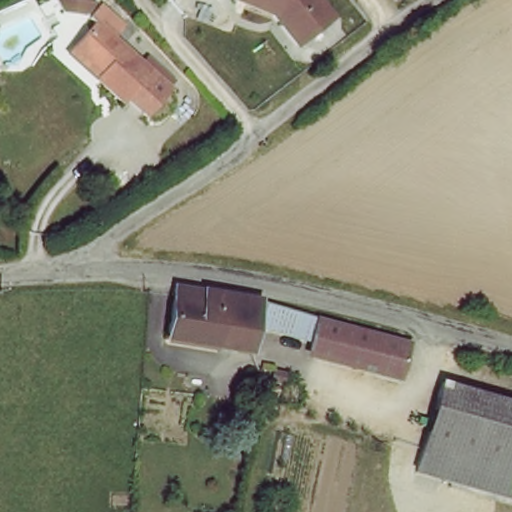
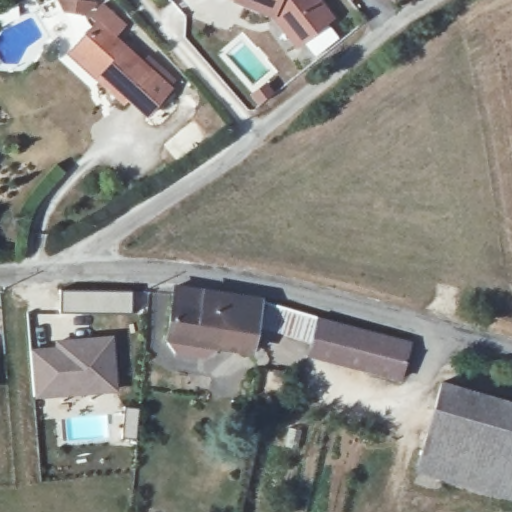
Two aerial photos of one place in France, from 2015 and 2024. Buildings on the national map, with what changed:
unchanged [(340,19),(298,49),(277,19),(237,6),(239,0),(324,0),(340,19)]
unchanged [(78,47),(98,26),(90,18),(107,2),(128,22),(115,36),(176,93),(153,118),(135,102),(129,109),(103,85),(70,54),(78,47)]
unchanged [(230,339),(172,330),(178,287),(205,289),(236,293),(230,339)]
new [(131,293),(130,315),(59,315),(60,291),(131,293)]
unchanged [(236,293),(247,295),(300,301),(319,306),(327,308),(321,331),(261,318),(256,342),(230,339),(236,293)]
unchanged [(327,308),(418,336),(409,366),(318,341),(321,331),(327,308)]
new [(55,349),(53,342),(112,337),(117,393),(33,401),(30,351),(55,349)]
unchanged [(422,472),(448,383),(512,402),(512,499),(422,472)]
new [(140,409),(137,442),(121,441),(123,408),(140,409)]

